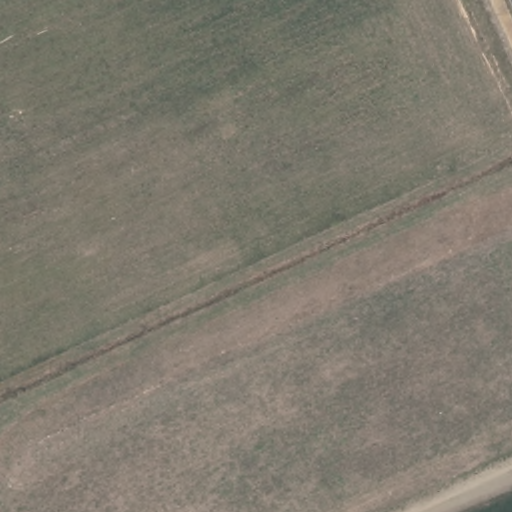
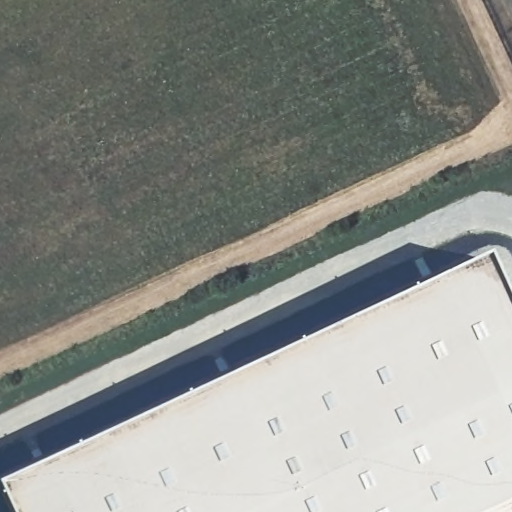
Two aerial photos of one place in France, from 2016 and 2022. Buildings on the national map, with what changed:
new [(12,512),(3,492),(496,262),(512,297),(512,512),(12,512)]

